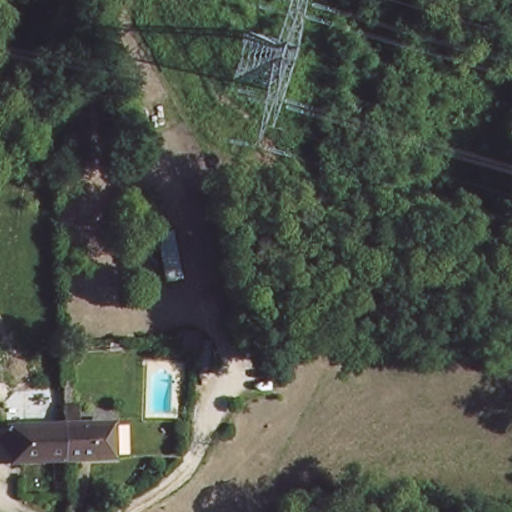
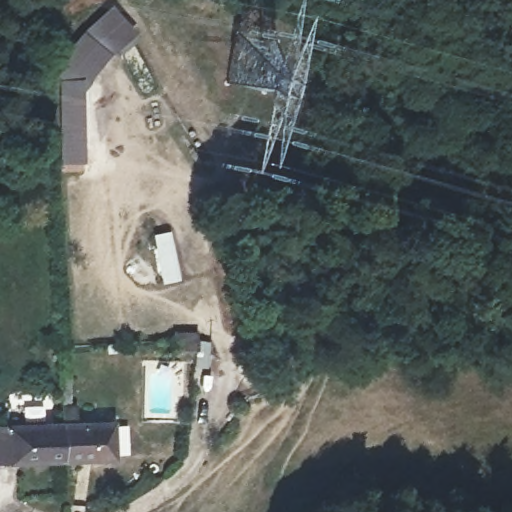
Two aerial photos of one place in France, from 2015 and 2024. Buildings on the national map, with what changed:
new [(130,37),(135,41),(120,55),(116,50),(83,89),(85,162),(59,163),(55,59),(80,31),(111,2),(135,30),(130,37)]
unchanged [(60,419),(60,402),(75,402),(76,420),(110,417),(108,456),(62,460),(60,419)]
unchanged [(11,462),(11,451),(0,450),(0,423),(60,419),(62,460),(11,462)]

